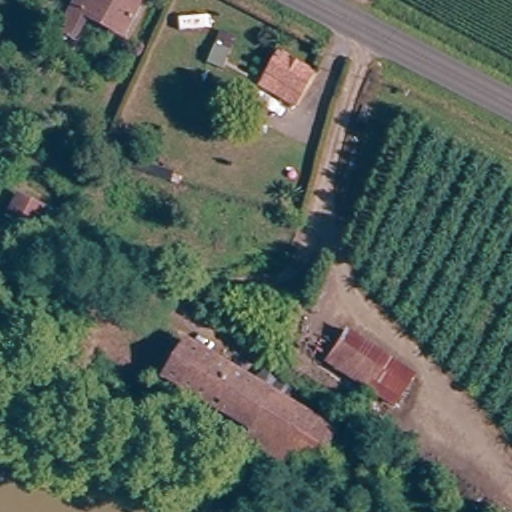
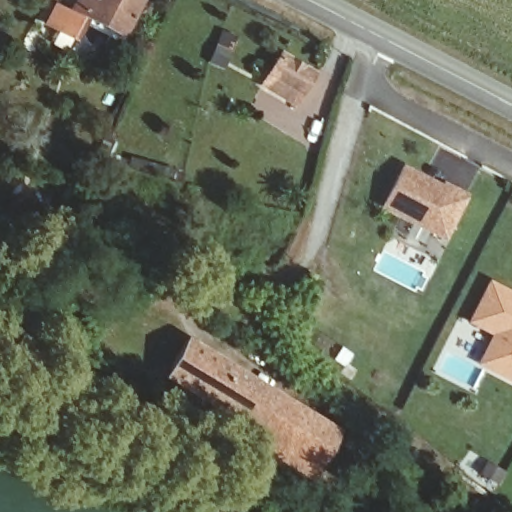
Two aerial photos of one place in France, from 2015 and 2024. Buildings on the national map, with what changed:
unchanged [(136,9),(119,39),(85,22),(75,42),(57,35),(73,0),(116,0),(136,9)]
unchanged [(295,108),(267,94),(282,65),(309,80),(295,108)]
new [(402,165),(442,186),(444,182),(471,196),(447,244),(382,210),(402,165)]
unchanged [(60,222),(63,224),(53,246),(50,245),(10,226),(20,204),(60,222)]
new [(512,384),(476,366),(492,336),(467,323),(490,282),(512,293),(512,384)]
unchanged [(337,430),(310,479),(250,445),(256,432),(165,380),(185,343),(337,430)]
unchanged [(373,417),(365,428),(345,414),(352,402),(373,417)]
unchanged [(407,475),(386,460),(399,441),(420,455),(407,475)]

